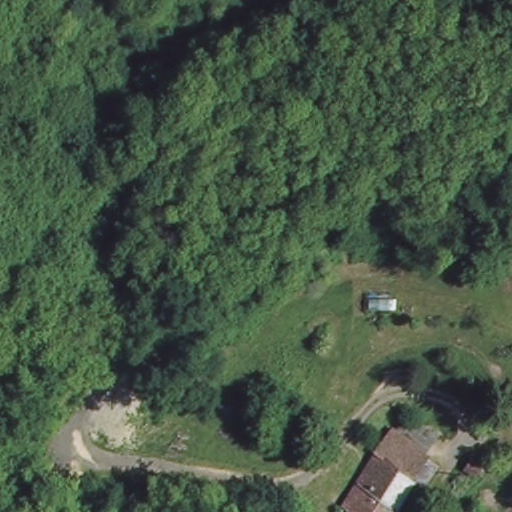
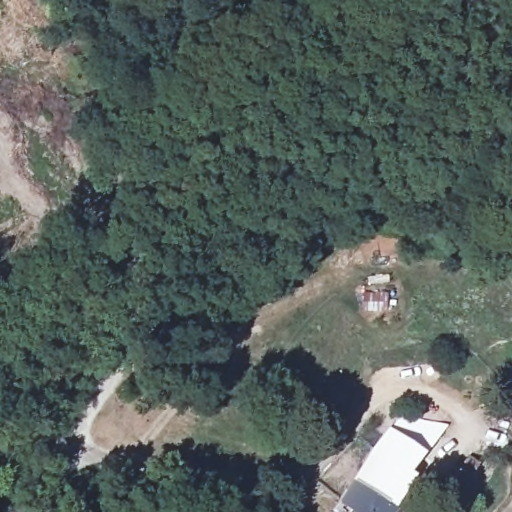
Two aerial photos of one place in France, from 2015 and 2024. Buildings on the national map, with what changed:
unchanged [(427,462),(412,481),(379,457),(396,436),(427,462)]
unchanged [(388,509),(393,512),(346,512),(348,509),(340,501),(379,457),(412,481),(388,509)]

